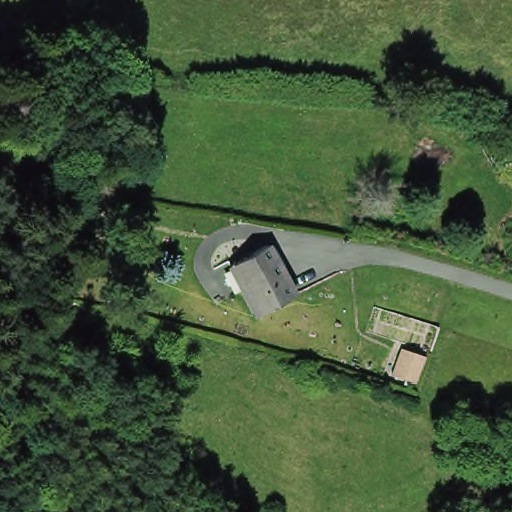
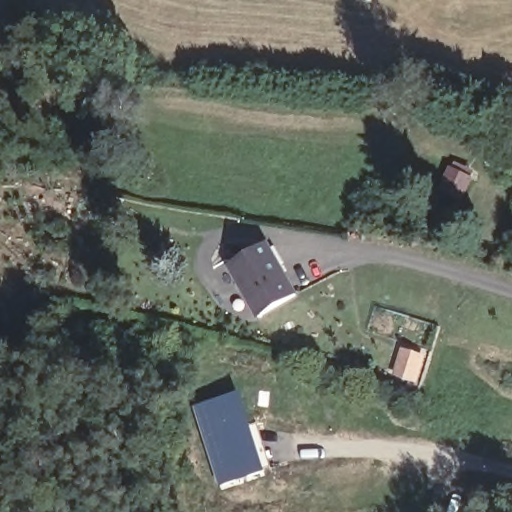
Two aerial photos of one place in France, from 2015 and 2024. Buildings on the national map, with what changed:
unchanged [(296,290),(256,310),(231,259),(270,239),(296,290)]
new [(424,357),(416,385),(389,377),(398,348),(424,357)]
new [(240,393),(265,474),(219,486),(194,407),(240,393)]

